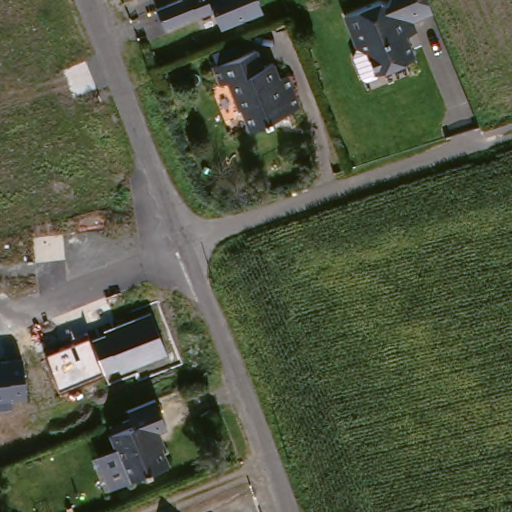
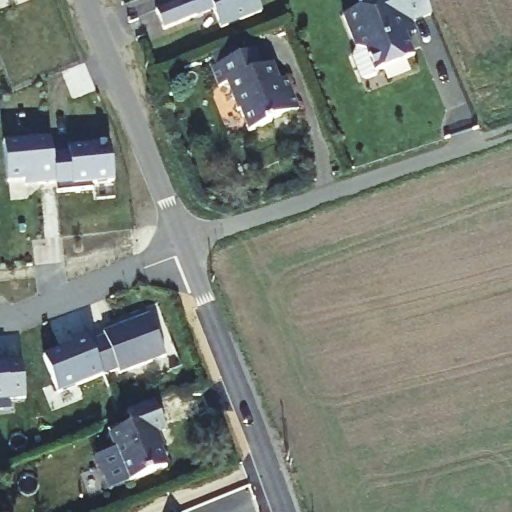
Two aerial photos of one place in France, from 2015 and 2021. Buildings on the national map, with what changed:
unchanged [(215,27),(210,9),(160,28),(154,10),(173,3),(172,0),(258,0),(262,10),(215,27)]
unchanged [(380,79),(374,77),(365,54),(368,45),(355,11),(383,0),(438,0),(442,10),(420,20),(414,33),(423,56),(392,69),(390,75),(380,79)]
unchanged [(262,52),(268,68),(280,63),(287,82),(294,85),(298,83),(310,111),(282,121),(280,118),(255,127),(237,85),(228,88),(220,69),(262,52)]
new [(32,183),(29,184),(15,185),(15,183),(11,146),(58,142),(60,158),(63,185),(45,187),(33,188),(32,183)]
new [(76,157),(75,145),(95,143),(96,149),(119,147),(122,184),(100,187),(100,193),(64,196),(63,185),(60,158),(76,157)]
unchanged [(121,374),(118,368),(105,373),(103,370),(58,389),(46,356),(89,339),(152,315),(167,353),(121,374)]
unchanged [(12,397),(13,406),(0,408),(0,362),(24,359),(25,396),(12,397)]
unchanged [(156,402),(162,400),(172,425),(159,431),(172,464),(134,479),(116,434),(137,426),(131,412),(135,410),(156,402)]

